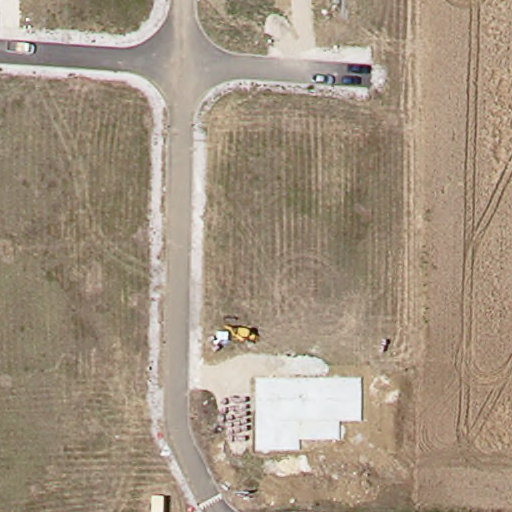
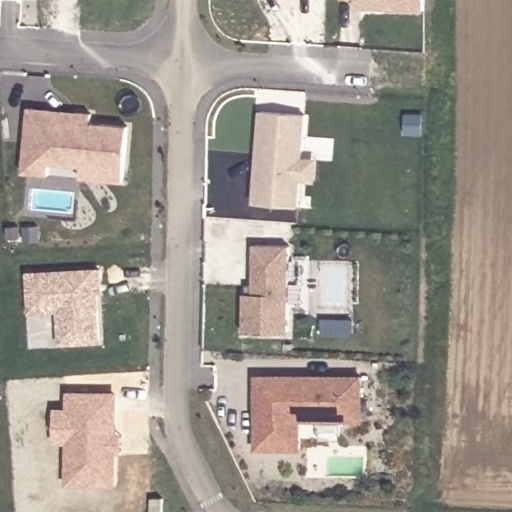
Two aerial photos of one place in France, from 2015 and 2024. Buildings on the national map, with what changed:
new [(28,107),(94,113),(93,122),(130,125),(125,182),(81,179),(82,165),(51,162),(50,176),(22,172),(28,107)]
new [(311,181),(296,180),(295,207),(251,204),(254,170),(254,160),(257,112),(301,115),(298,159),(313,160),(311,181)]
new [(251,298),(252,249),(288,249),(286,336),(242,337),(242,298),(251,298)]
new [(60,345),(59,311),(31,313),(30,272),(100,270),(102,343),(60,345)]
unchanged [(363,376),(363,424),(302,424),(301,452),(254,452),(255,376),(363,376)]
new [(69,443),(56,442),(57,407),(69,407),(70,390),(120,389),(120,432),(125,431),(125,452),(119,452),(120,482),(68,484),(69,443)]

